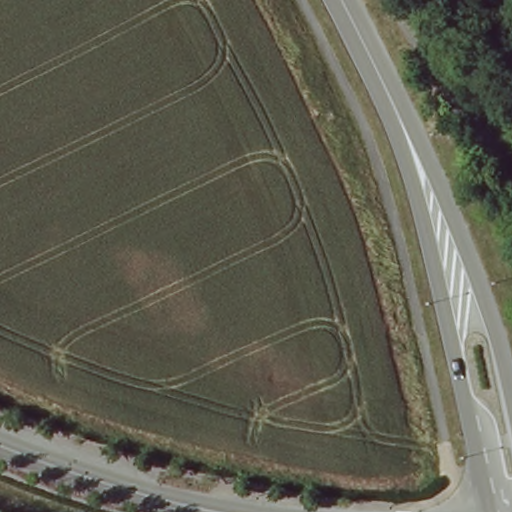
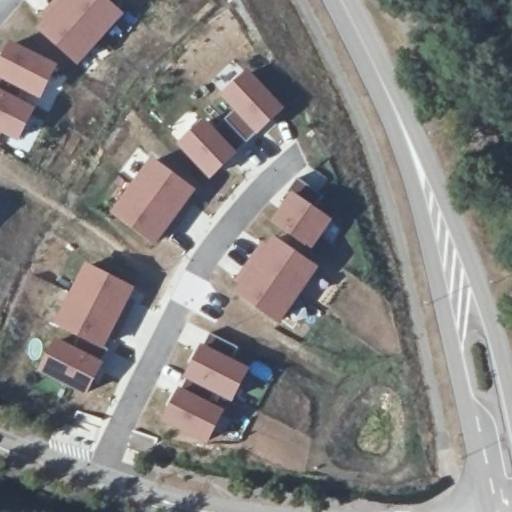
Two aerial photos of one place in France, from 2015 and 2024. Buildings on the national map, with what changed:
new [(106,0),(122,13),(77,66),(35,29),(61,0),(106,0)]
new [(40,100),(22,92),(20,99),(35,106),(18,142),(1,133),(0,135),(0,58),(8,40),(57,64),(40,100)]
new [(282,109),(208,182),(176,146),(205,119),(215,131),(235,112),(220,96),(247,69),(282,109)]
new [(195,190),(154,247),(112,214),(152,158),(195,190)]
new [(290,193),(288,192),(298,180),(324,198),(317,208),(332,220),(312,251),(270,220),(290,193)]
new [(317,267),(278,323),(232,292),(272,235),(317,267)]
new [(135,288),(103,351),(52,324),(85,262),(135,288)]
new [(177,388),(182,390),(187,381),(183,378),(202,342),(206,345),(211,333),(241,349),(235,361),(248,367),(232,402),(215,394),(210,402),(223,410),(207,446),(160,421),(177,388)]
new [(102,362),(87,396),(38,372),(53,339),(102,362)]

